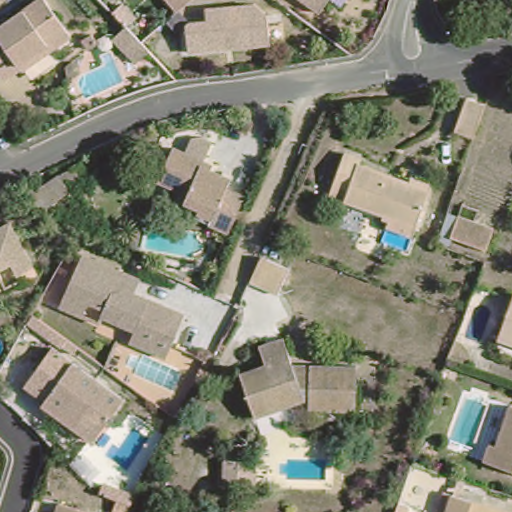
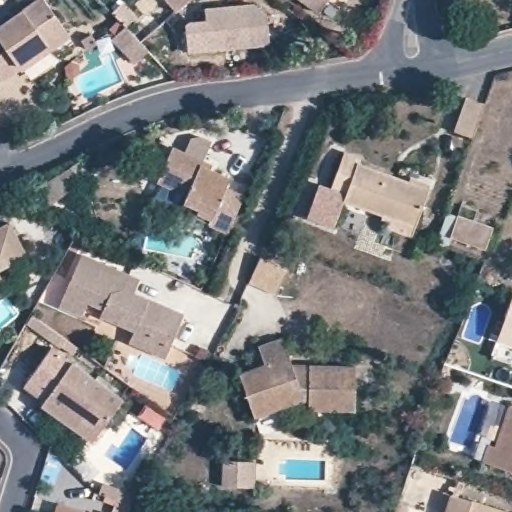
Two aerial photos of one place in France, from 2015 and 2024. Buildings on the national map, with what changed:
unchanged [(2,81),(0,78),(0,26),(37,0),(44,0),(70,36),(51,50),(21,71),(19,69),(2,81)]
unchanged [(167,0),(186,0),(176,9),(167,0)]
unchanged [(322,15),(301,0),(332,0),(330,3),(322,15)]
unchanged [(187,53),(184,26),(188,23),(204,21),(203,9),(252,4),(266,15),(267,25),(269,45),(187,53)]
unchanged [(484,105),(472,139),(454,133),(466,99),(484,105)]
unchanged [(198,209),(183,202),(186,195),(183,194),(176,209),(150,198),(157,182),(172,148),(202,160),(212,165),(210,170),(230,179),(225,189),(244,197),(227,233),(209,225),(194,218),(198,209)]
unchanged [(429,185),(412,232),(386,222),(389,213),(345,197),(343,202),(326,196),(344,148),(361,154),(359,159),(429,185)]
unchanged [(79,161),(86,172),(73,180),(66,179),(61,182),(68,192),(42,210),(32,194),(79,161)]
new [(333,228),(307,219),(319,184),(329,189),(326,196),(343,202),(333,228)]
unchanged [(452,239),(449,245),(437,242),(447,213),(458,216),(450,238),(452,239)]
unchanged [(485,250),(452,239),(458,216),(493,228),(485,250)]
unchanged [(27,267),(11,275),(5,264),(0,266),(0,225),(4,223),(27,267)]
unchanged [(130,326),(98,312),(95,319),(79,312),(56,302),(78,251),(126,272),(136,276),(130,290),(180,312),(167,342),(162,354),(125,338),(130,326)]
unchanged [(288,269),(276,295),(249,283),(260,257),(288,269)]
unchanged [(497,338),(512,295),(512,344),(497,338)]
unchanged [(356,367),(355,411),(308,410),(308,401),(304,401),(254,418),(239,374),(265,366),(258,347),(283,339),(292,366),(356,367)]
unchanged [(124,400),(94,442),(41,404),(44,400),(24,385),(50,348),(124,400)]
unchanged [(212,393),(202,410),(192,404),(201,387),(212,393)]
unchanged [(483,458),(489,439),(496,442),(509,401),(512,402),(512,468),(483,458)]
unchanged [(251,463),(250,489),(220,488),(221,462),(251,463)]
unchanged [(505,512),(435,512),(439,501),(448,504),(450,494),(505,512)]
unchanged [(99,512),(54,512),(58,499),(99,512)]

